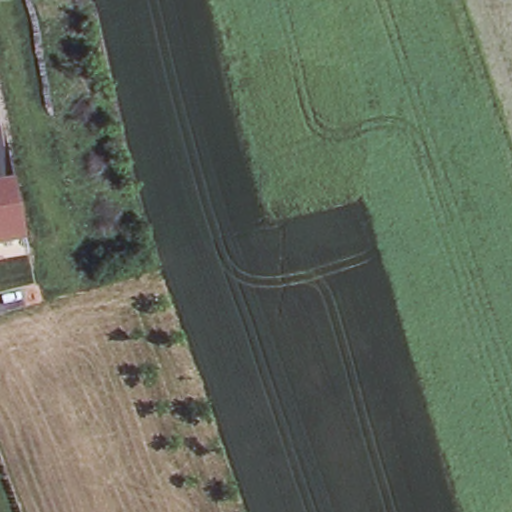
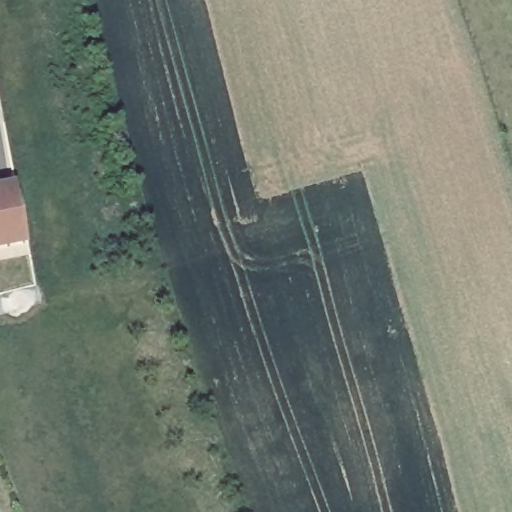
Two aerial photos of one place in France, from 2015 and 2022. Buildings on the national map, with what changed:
unchanged [(29,241),(0,246),(0,186),(17,183),(29,241)]

